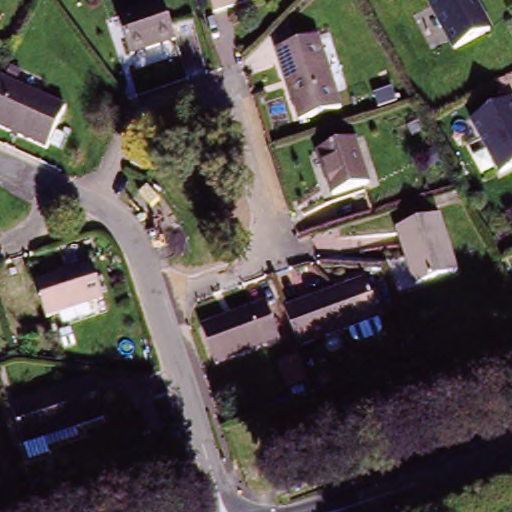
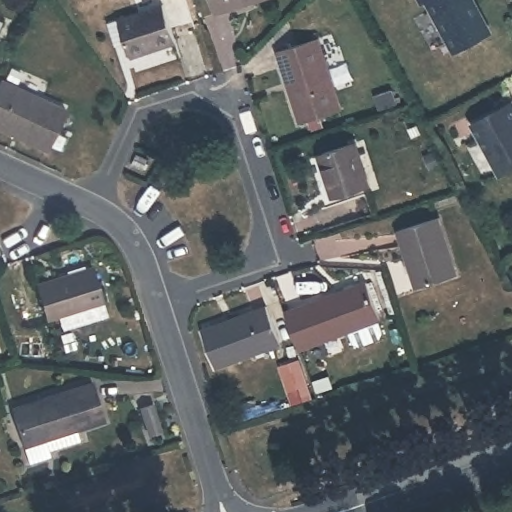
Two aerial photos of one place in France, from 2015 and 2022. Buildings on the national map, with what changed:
unchanged [(220,14),(215,0),(262,0),(220,14)]
unchanged [(502,32),(466,50),(440,0),(485,0),(502,32)]
unchanged [(126,61),(114,22),(161,8),(172,47),(126,61)]
unchanged [(301,124),(277,52),(317,38),(342,110),(301,124)]
unchanged [(0,84),(64,113),(45,155),(0,134),(0,84)]
unchanged [(507,176),(480,125),(512,108),(512,173),(507,176)]
unchanged [(356,148),(370,193),(335,204),(320,160),(356,148)]
unchanged [(397,232),(439,220),(456,278),(414,290),(397,232)]
unchanged [(88,271),(99,305),(44,322),(34,288),(88,271)]
unchanged [(372,282),(384,322),(299,349),(286,309),(303,305),(328,296),(372,282)]
unchanged [(215,371),(202,331),(255,317),(270,312),(282,351),(267,355),(258,358),(215,371)]
unchanged [(26,468),(21,451),(9,413),(90,387),(102,426),(75,435),(78,444),(46,455),(48,461),(26,468)]

